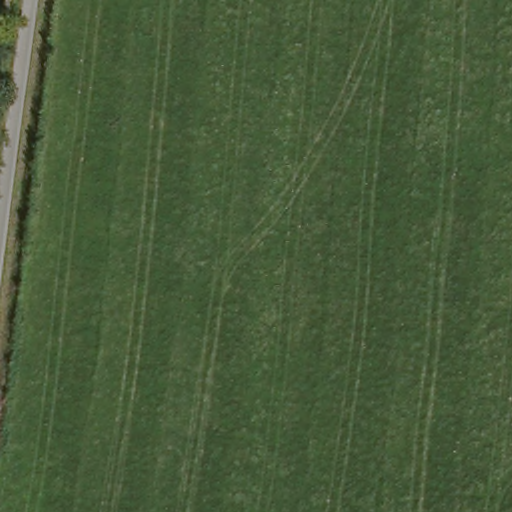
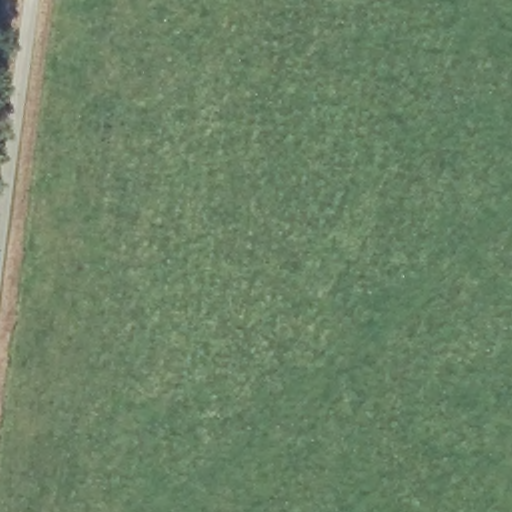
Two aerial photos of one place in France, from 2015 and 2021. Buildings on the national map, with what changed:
[]

